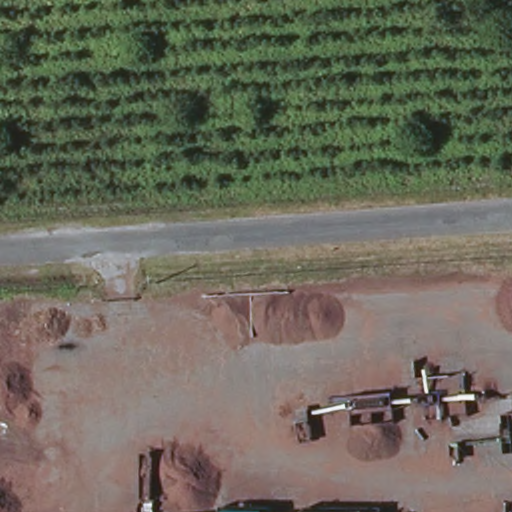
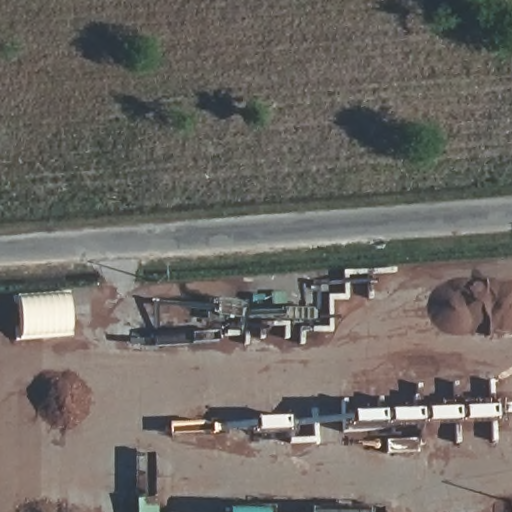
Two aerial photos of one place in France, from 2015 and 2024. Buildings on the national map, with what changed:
new [(20,337),(17,297),(67,296),(69,335),(20,337)]

